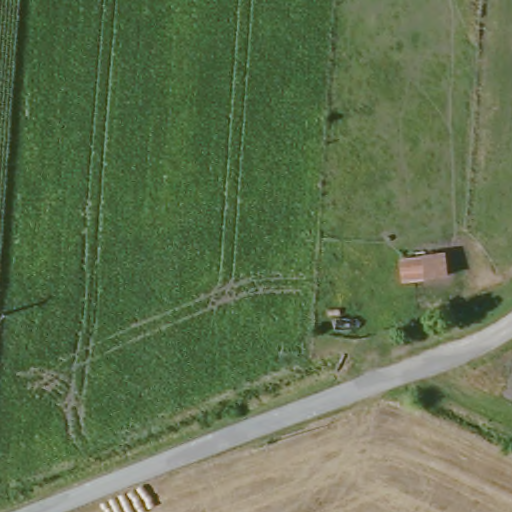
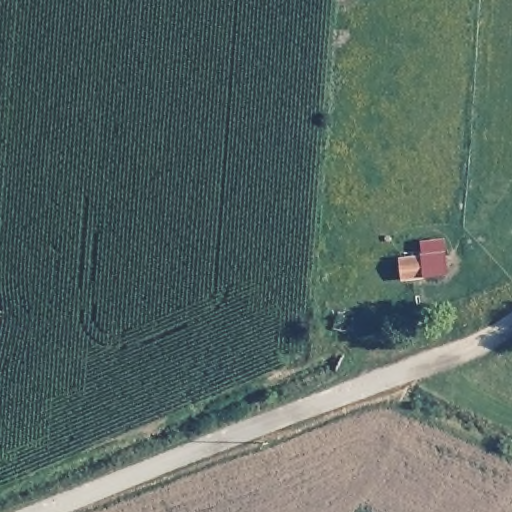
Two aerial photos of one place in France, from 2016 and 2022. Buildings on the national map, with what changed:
unchanged [(442,270),(398,277),(394,254),(441,249),(442,270)]

